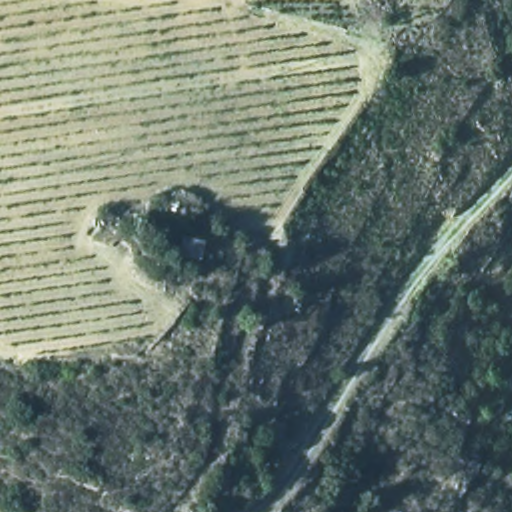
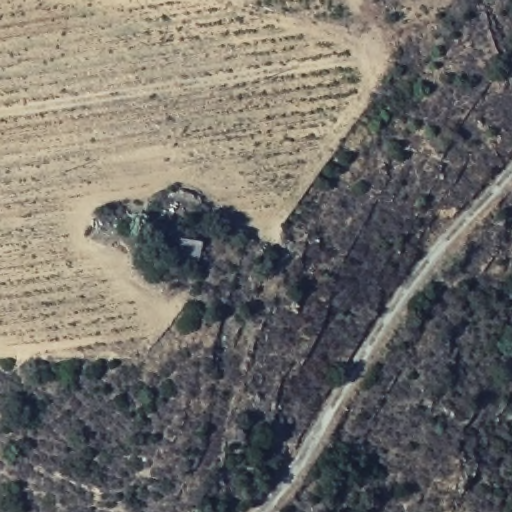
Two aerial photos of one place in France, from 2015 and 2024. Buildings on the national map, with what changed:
unchanged [(190,236),(205,239),(205,260),(195,259),(179,258),(180,235),(190,236)]

